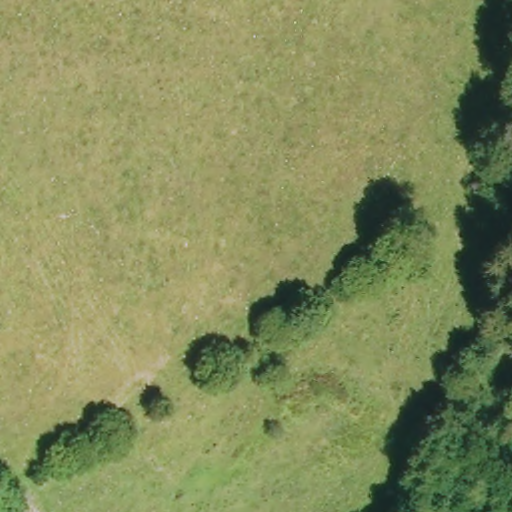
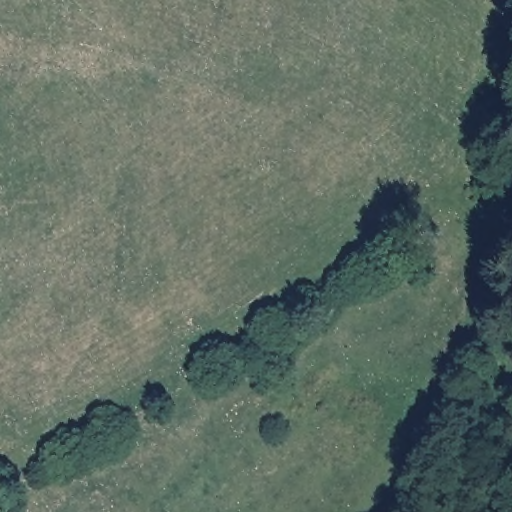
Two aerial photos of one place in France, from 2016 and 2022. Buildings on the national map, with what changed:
[]

